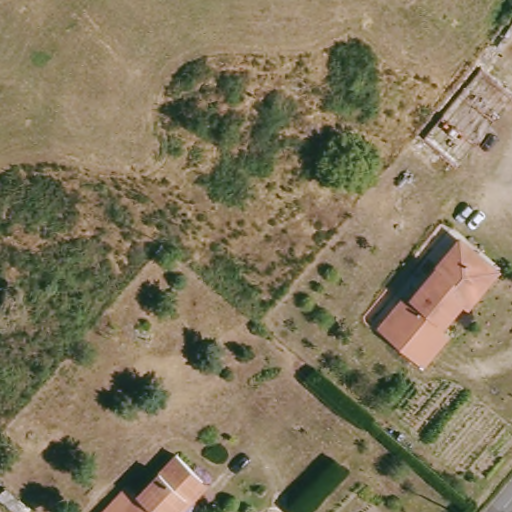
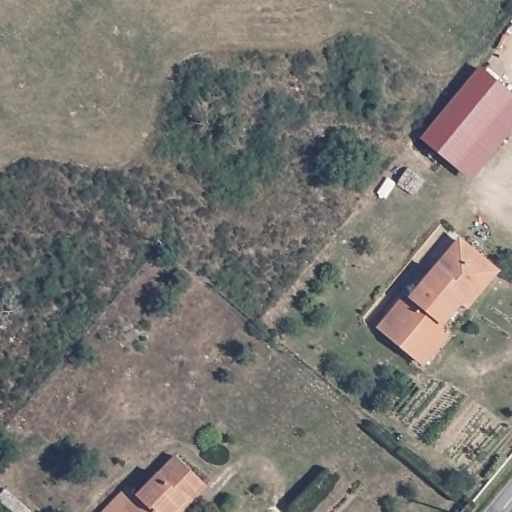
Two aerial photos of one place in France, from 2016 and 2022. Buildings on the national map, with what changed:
new [(480,69),(512,94),(512,132),(472,180),(422,137),(480,69)]
unchanged [(402,299),(407,303),(460,240),(478,255),(467,267),(480,278),(467,294),(464,290),(459,296),(462,300),(437,329),(445,335),(422,362),(379,325),(402,299)]
unchanged [(183,507),(179,512),(104,512),(118,496),(130,483),(140,492),(180,452),(205,477),(179,503),(183,507)]

